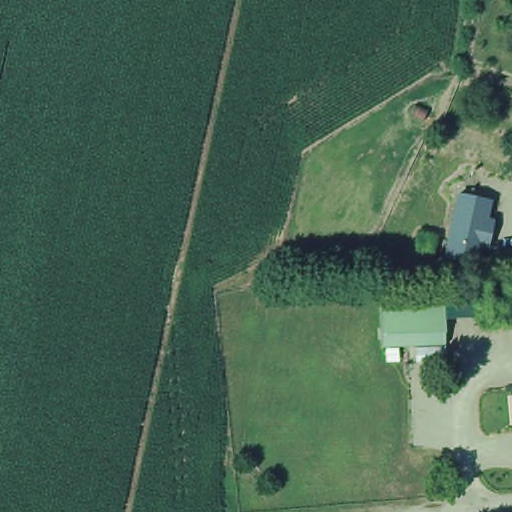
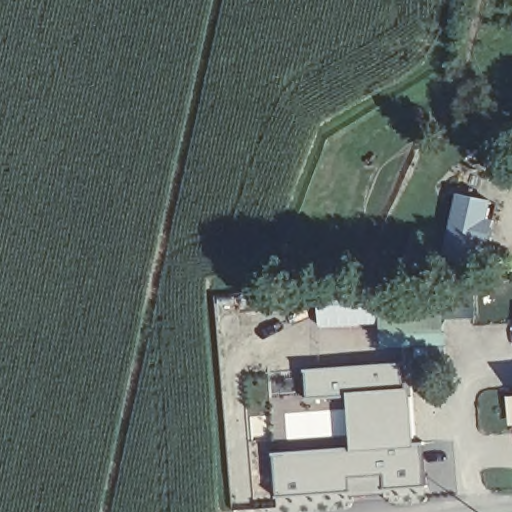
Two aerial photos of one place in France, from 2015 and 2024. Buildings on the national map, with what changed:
unchanged [(481,201),(467,263),(436,256),(450,194),(481,201)]
unchanged [(372,301),(435,299),(435,324),(372,326),(372,301)]
unchanged [(435,324),(436,350),(373,352),(372,326),(435,324)]
new [(301,371),(402,365),(402,390),(342,395),(303,399),(301,371)]
new [(405,445),(345,450),(342,395),(402,390),(405,445)]
new [(419,445),(422,487),(379,488),(378,479),(347,479),(346,494),(272,498),(270,456),(345,450),(405,445),(419,445)]

